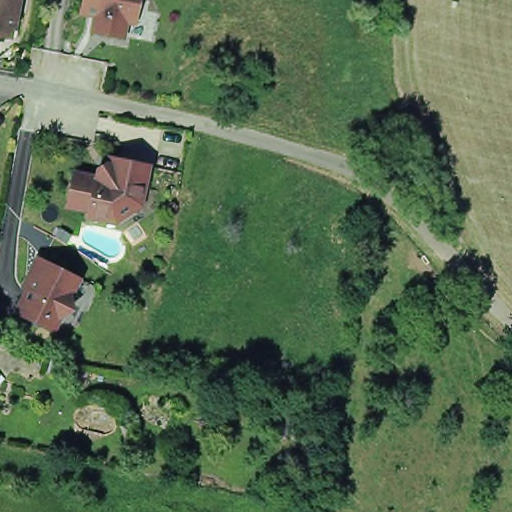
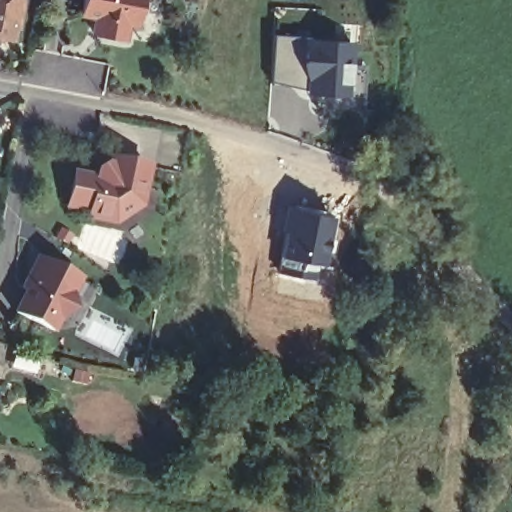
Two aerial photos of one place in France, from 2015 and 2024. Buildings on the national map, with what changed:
unchanged [(0,36),(0,0),(29,0),(21,40),(0,36)]
unchanged [(123,38),(109,35),(108,37),(94,35),(97,16),(81,14),(84,0),(140,0),(138,11),(136,24),(126,22),(123,38)]
new [(355,41),(353,97),(307,96),(309,89),(273,81),(274,35),(355,41)]
unchanged [(99,178),(100,171),(109,165),(115,166),(117,161),(151,167),(147,189),(144,188),(140,209),(122,206),(118,224),(91,218),(92,212),(70,208),(77,174),(99,178)]
new [(285,204),(332,213),(318,278),(276,267),(285,204)]
unchanged [(70,324),(58,318),(52,332),(14,314),(26,291),(21,289),(24,282),(31,280),(40,262),(73,279),(89,286),(70,324)]

